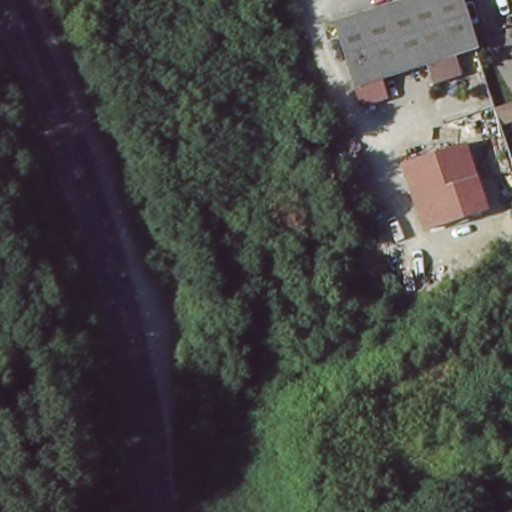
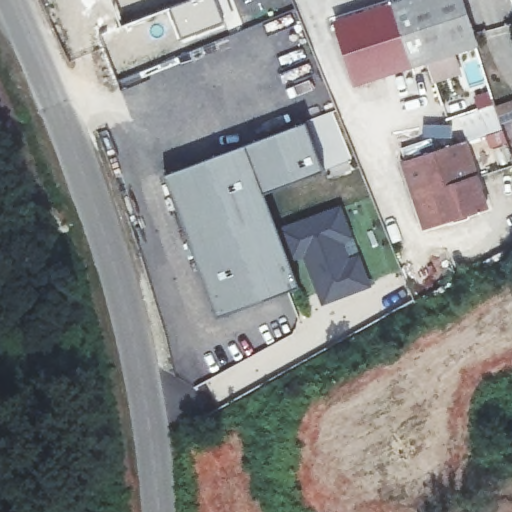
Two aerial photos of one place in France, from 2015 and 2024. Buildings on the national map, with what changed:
unchanged [(478,48),(357,84),(336,18),(394,0),(463,0),(478,48)]
new [(178,174),(319,121),(335,164),(273,188),(287,224),(342,202),(372,286),(323,305),(312,276),(224,312),(178,174)]
new [(484,151),(505,220),(443,239),(422,170),(484,151)]

